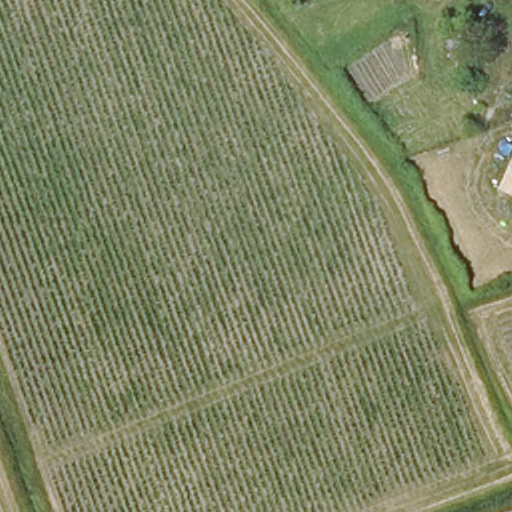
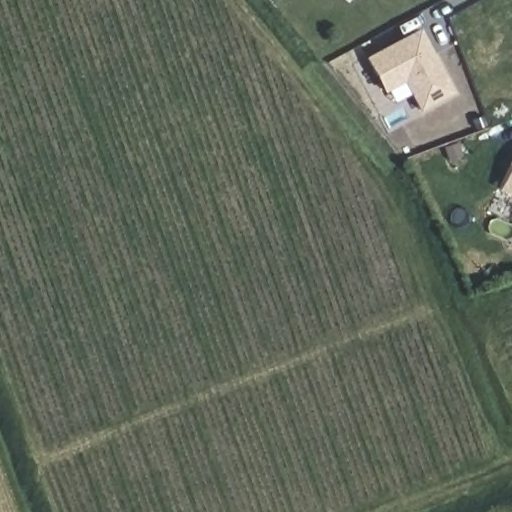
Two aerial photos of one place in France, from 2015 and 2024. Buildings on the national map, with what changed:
new [(363,55),(418,27),(453,93),(418,112),(409,94),(390,104),(363,55)]
unchanged [(512,160),(512,196),(497,190),(512,160)]

